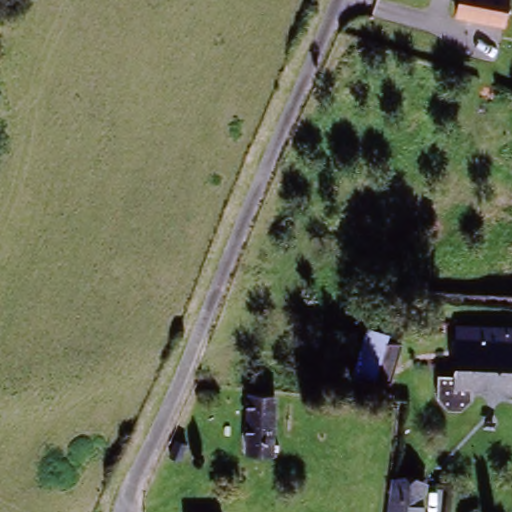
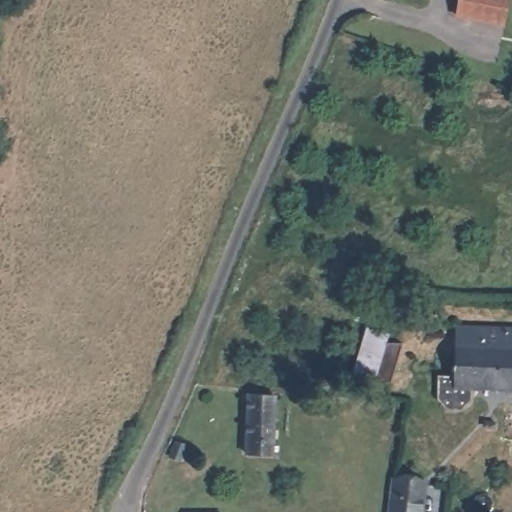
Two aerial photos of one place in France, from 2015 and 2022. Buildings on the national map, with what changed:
unchanged [(458,0),(510,0),(505,22),(456,11),(458,0)]
unchanged [(359,370),(370,332),(408,343),(398,383),(359,370)]
unchanged [(461,335),(512,338),(512,355),(460,352),(461,335)]
unchanged [(439,401),(440,380),(458,381),(460,352),(512,355),(512,395),(477,393),(476,406),(463,412),(448,410),(439,401)]
unchanged [(246,457),(253,397),(279,399),(271,460),(246,457)]
unchanged [(182,468),(188,453),(203,459),(197,474),(182,468)]
unchanged [(429,494),(423,512),(393,512),(402,485),(429,494)]

